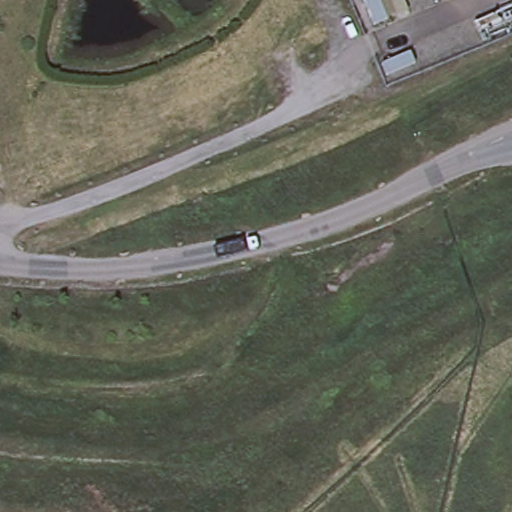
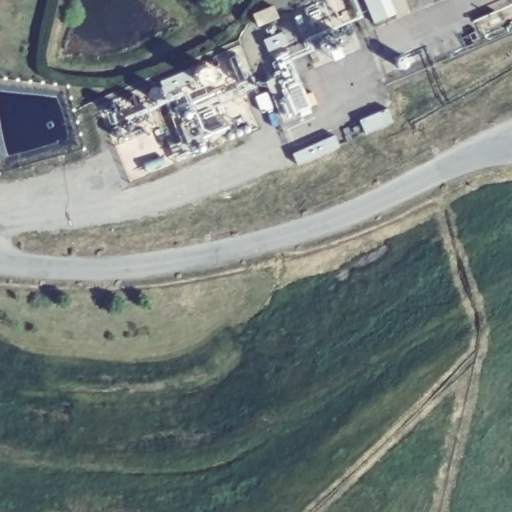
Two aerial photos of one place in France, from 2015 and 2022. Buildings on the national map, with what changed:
unchanged [(364,0),(404,0),(408,10),(374,23),(364,0)]

